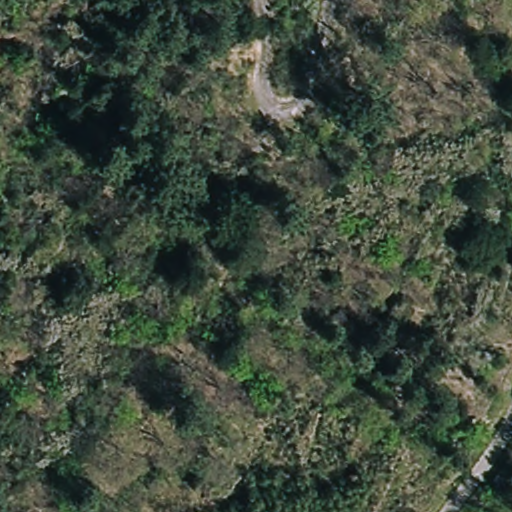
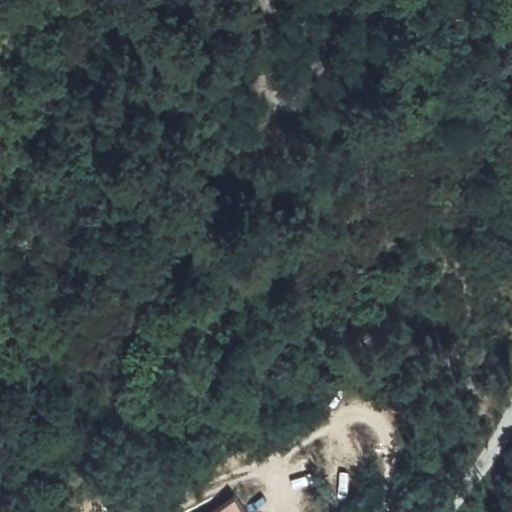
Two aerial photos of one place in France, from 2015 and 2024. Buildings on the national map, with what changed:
new [(233,495),(245,512),(210,512),(233,495)]
unchanged [(482,510),(484,512),(480,512),(482,510)]

